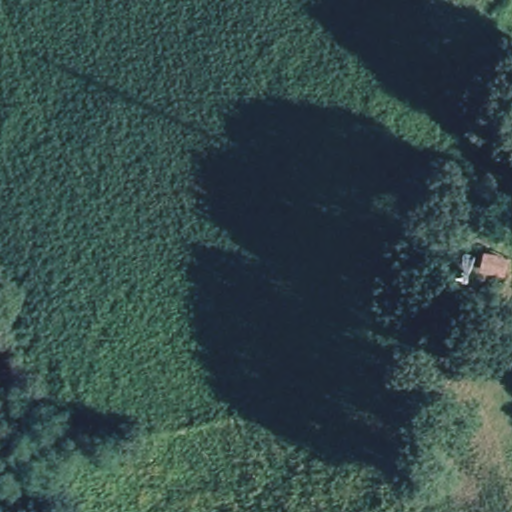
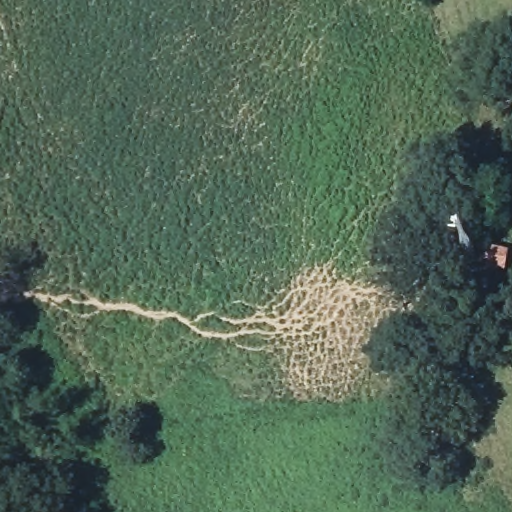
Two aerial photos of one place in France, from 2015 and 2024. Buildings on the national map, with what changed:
unchanged [(508,254),(504,273),(485,269),(488,250),(508,254)]

